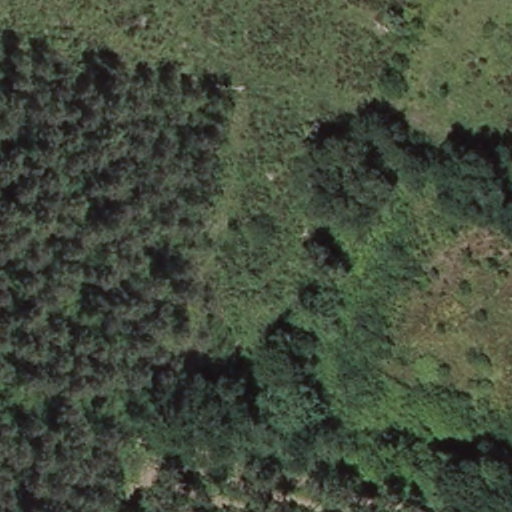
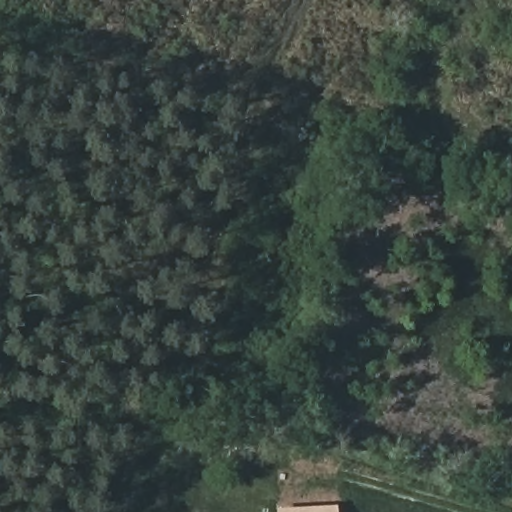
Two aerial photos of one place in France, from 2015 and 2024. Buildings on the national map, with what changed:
new [(337,504),(338,512),(277,512),(276,508),(337,504)]

